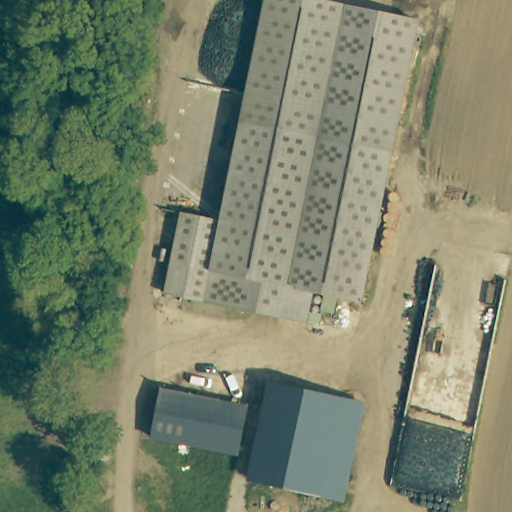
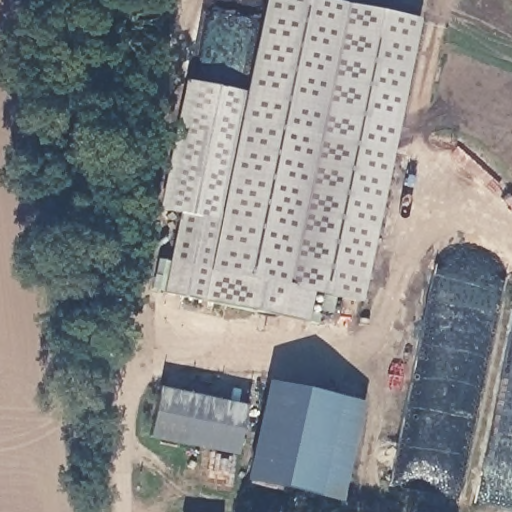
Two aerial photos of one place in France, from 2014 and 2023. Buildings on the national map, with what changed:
unchanged [(416,17),(360,298),(312,292),(306,316),(162,292),(175,211),(217,216),(258,0),(334,0),(416,17)]
new [(160,209),(186,80),(241,91),(217,216),(175,211),(160,209)]
unchanged [(263,380),(360,399),(340,495),(243,480),(263,380)]
unchanged [(242,403),(233,456),(145,440),(158,386),(242,403)]

